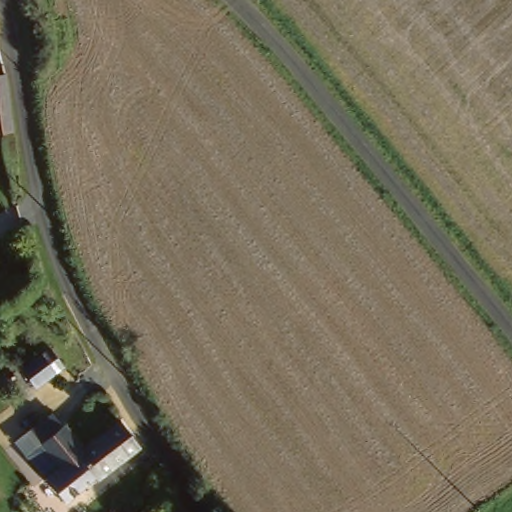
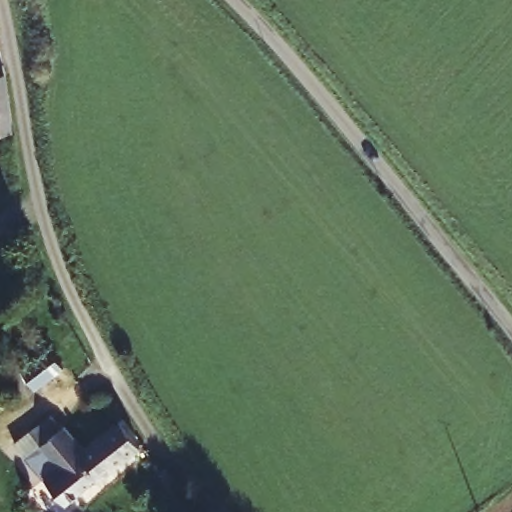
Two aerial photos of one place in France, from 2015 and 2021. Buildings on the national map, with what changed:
unchanged [(0,291),(0,281),(6,286),(0,291)]
unchanged [(129,452),(64,502),(59,506),(57,508),(49,499),(37,483),(50,473),(52,472),(34,448),(61,429),(78,453),(89,446),(114,427),(129,452)]

